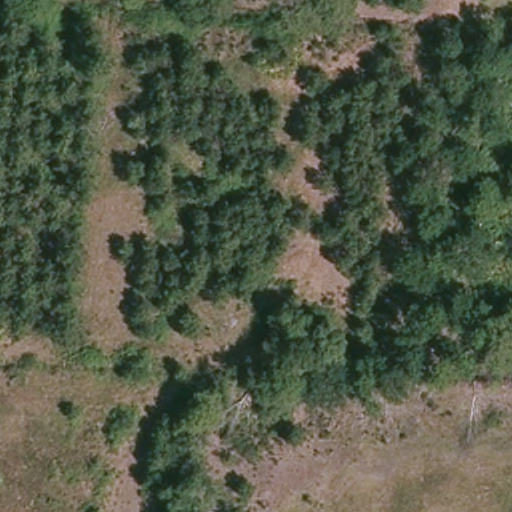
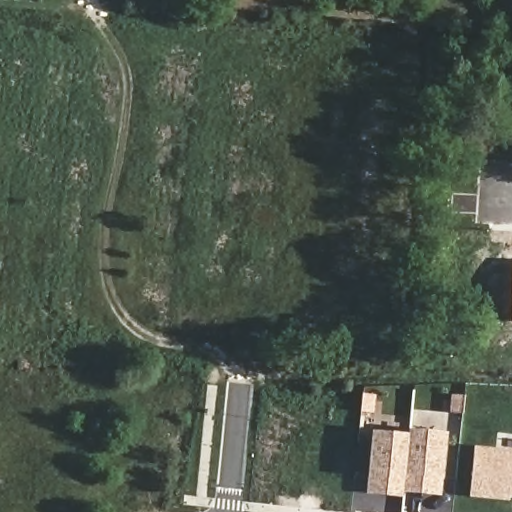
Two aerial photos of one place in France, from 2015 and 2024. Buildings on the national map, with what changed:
new [(443,497),(404,494),(404,499),(366,496),(372,432),(410,435),(410,431),(448,434),(443,497)]
new [(512,497),(503,497),(502,501),(470,498),(475,448),(512,452),(512,497)]

